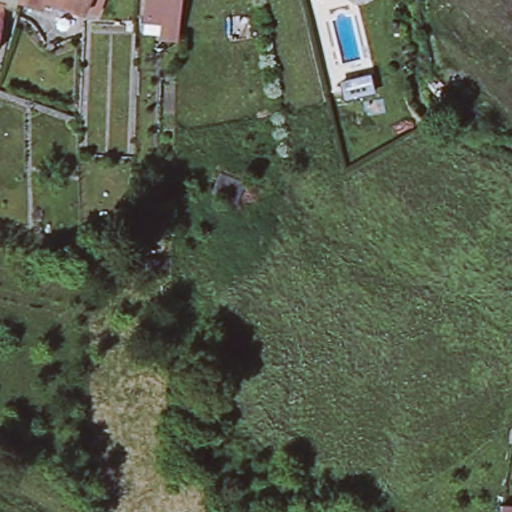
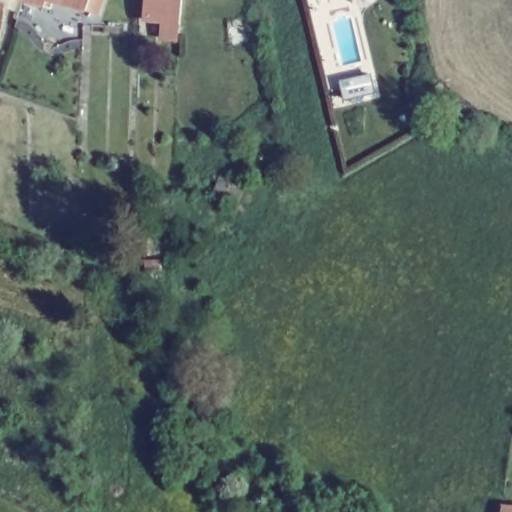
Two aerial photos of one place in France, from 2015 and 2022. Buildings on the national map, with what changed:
unchanged [(35,3),(26,0),(36,0),(35,3)]
unchanged [(91,12),(78,8),(78,7),(55,0),(94,0),(91,12)]
unchanged [(155,33),(156,18),(138,16),(139,0),(174,0),(172,19),(172,35),(155,33)]
unchanged [(499,512),(501,502),(512,504),(512,512),(499,512)]

